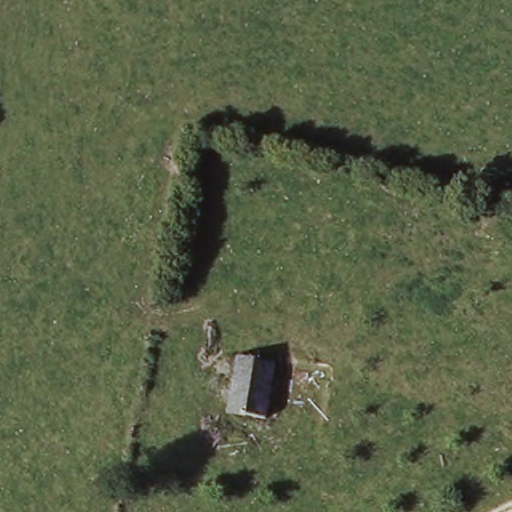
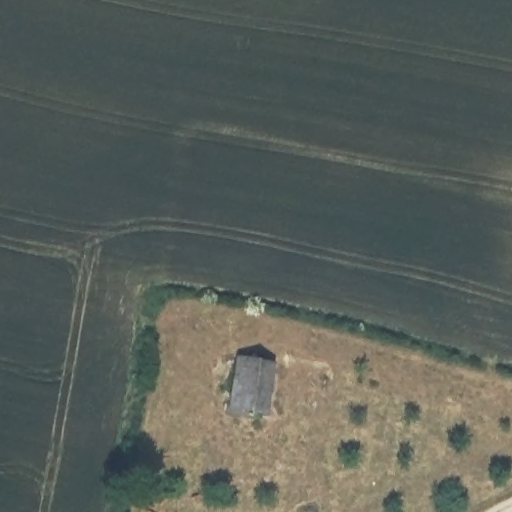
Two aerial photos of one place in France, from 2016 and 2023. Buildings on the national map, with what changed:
unchanged [(278,367),(266,423),(226,416),(239,360),(278,367)]

